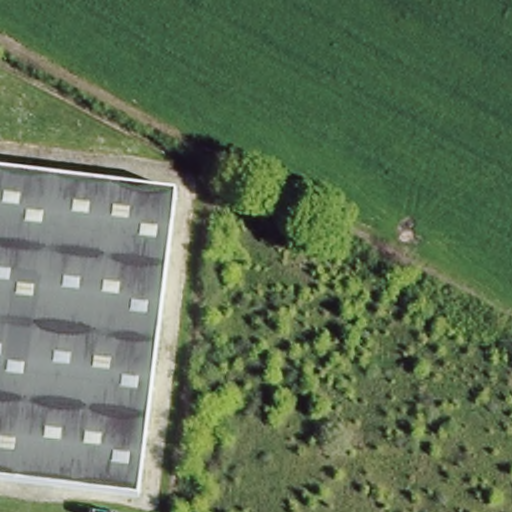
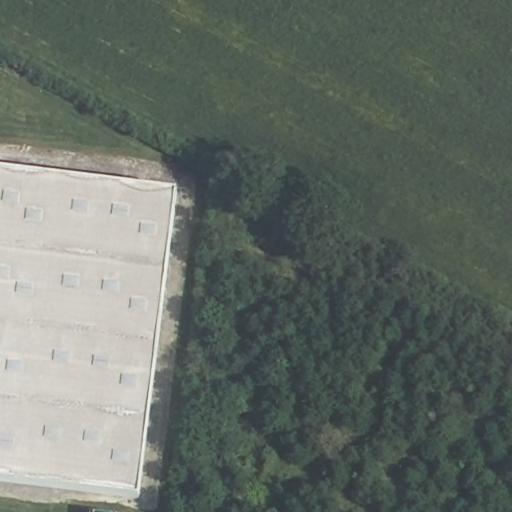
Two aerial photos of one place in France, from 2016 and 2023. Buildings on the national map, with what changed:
unchanged [(175,190),(137,491),(0,473),(0,168),(175,190)]

